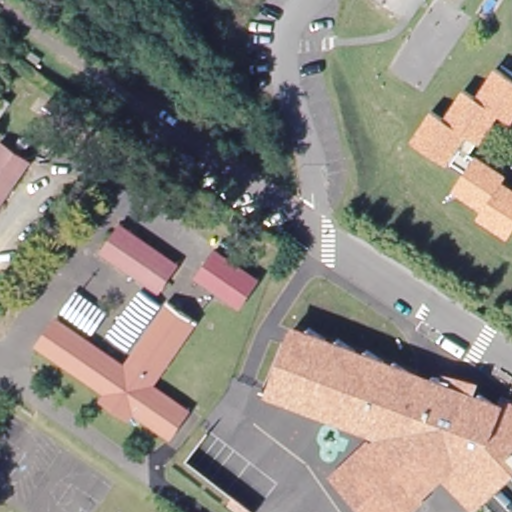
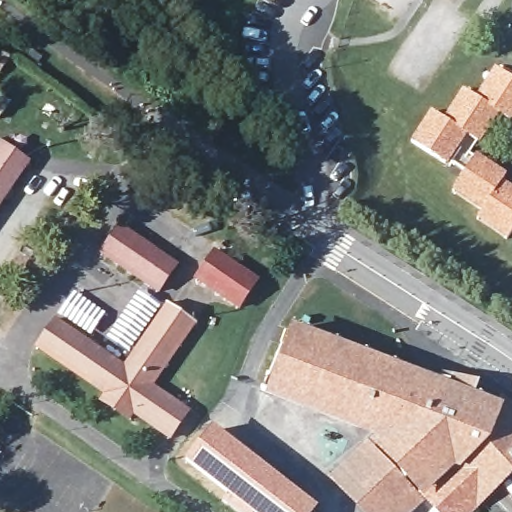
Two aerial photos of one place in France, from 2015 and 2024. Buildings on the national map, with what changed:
unchanged [(9,60),(0,75),(0,55),(1,52),(11,59),(9,60)]
unchanged [(477,219),(480,215),(482,211),(451,190),(457,182),(464,171),(448,160),(445,164),(415,145),(410,141),(432,110),(440,116),(442,119),(463,89),(468,92),(475,97),(495,67),(504,74),(512,79),(512,118),(510,121),(497,112),(469,153),(504,178),(503,180),(512,186),(512,231),(506,239),(477,219)]
unchanged [(0,116),(0,96),(9,103),(0,116)]
unchanged [(2,145),(28,163),(0,203),(0,149),(2,145)]
unchanged [(120,228),(174,266),(158,290),(103,252),(120,228)]
unchanged [(220,258),(260,287),(242,312),(202,283),(220,258)]
unchanged [(137,411),(133,417),(108,400),(112,394),(42,346),(60,321),(130,369),(173,307),(198,325),(155,386),(192,411),(175,437),(137,411)]
unchanged [(330,478),(374,440),(369,436),(263,395),(292,320),(500,403),(503,396),(512,402),(512,475),(473,512),(470,512),(441,482),(410,512),(363,512),(330,478)]
new [(213,426),(252,454),(319,507),(315,512),(251,512),(185,461),(213,426)]

